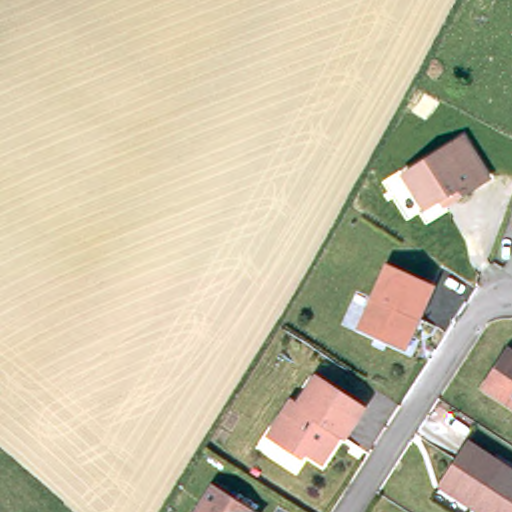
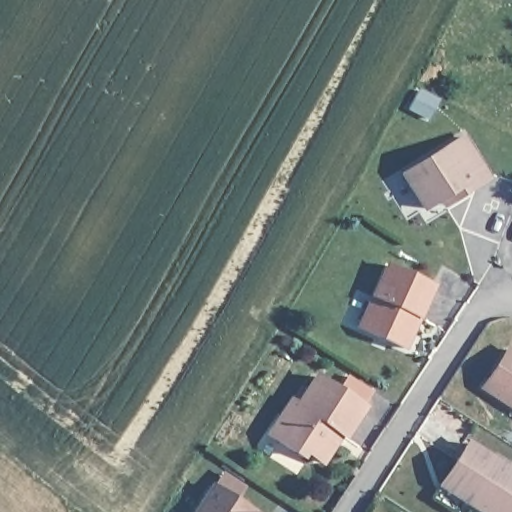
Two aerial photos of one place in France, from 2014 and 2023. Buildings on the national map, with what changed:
unchanged [(440,192),(423,203),(402,170),(461,132),(487,172),(452,194),(444,199),(440,192)]
unchanged [(410,342),(363,322),(391,259),(437,280),(423,312),(420,320),(410,342)]
unchanged [(507,347),(512,350),(512,404),(483,385),(507,347)]
unchanged [(282,417),(292,401),(285,396),(304,367),(364,407),(345,436),(338,432),(332,440),(336,442),(323,462),(307,452),(303,457),(280,442),(270,435),(282,417)]
unchanged [(445,479),(469,441),(512,468),(512,512),(487,512),(472,502),(442,483),(445,479)]
unchanged [(257,511),(256,512),(190,512),(210,481),(257,511)]

